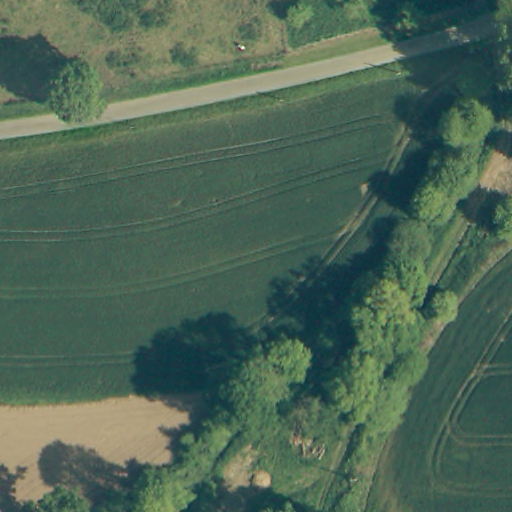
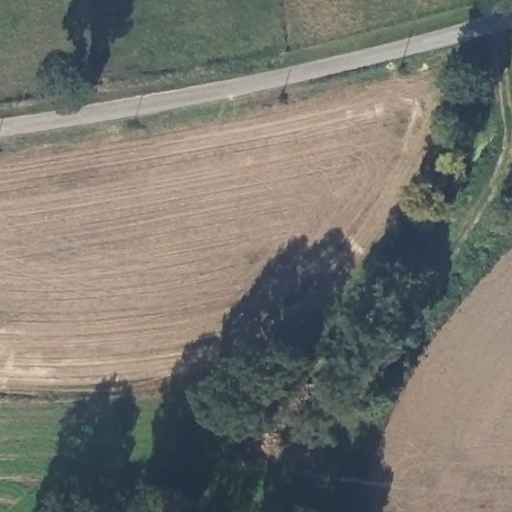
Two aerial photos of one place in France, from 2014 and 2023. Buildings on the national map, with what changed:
[]

